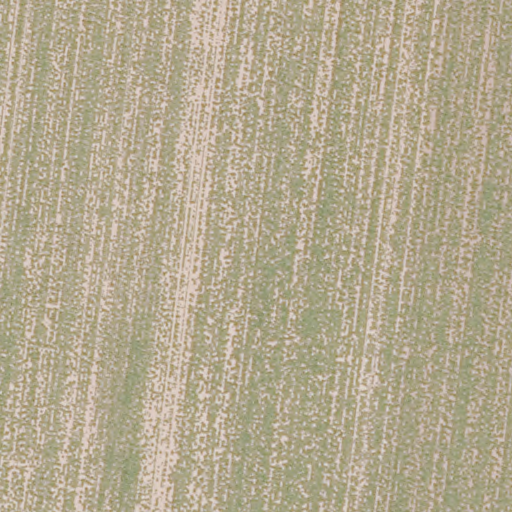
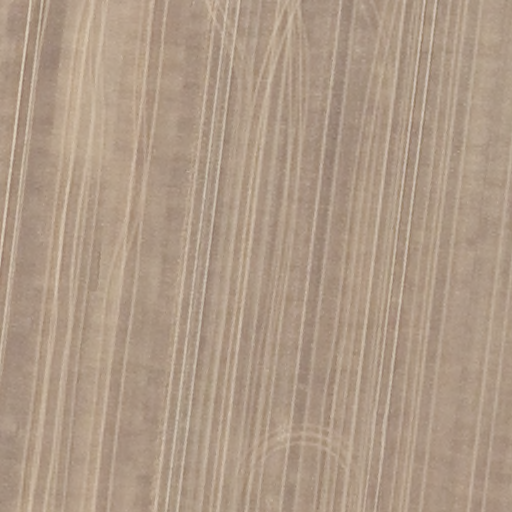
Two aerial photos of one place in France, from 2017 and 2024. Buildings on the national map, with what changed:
[]

